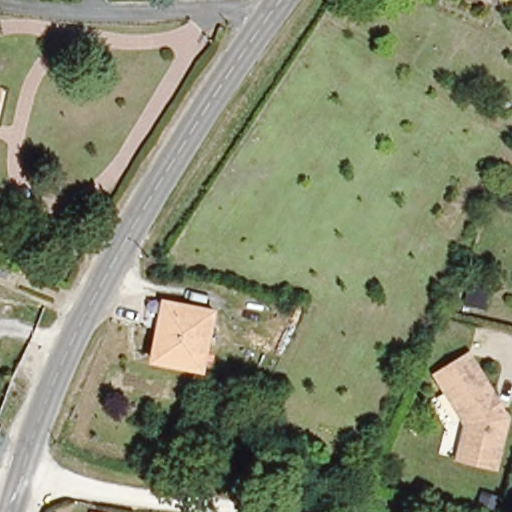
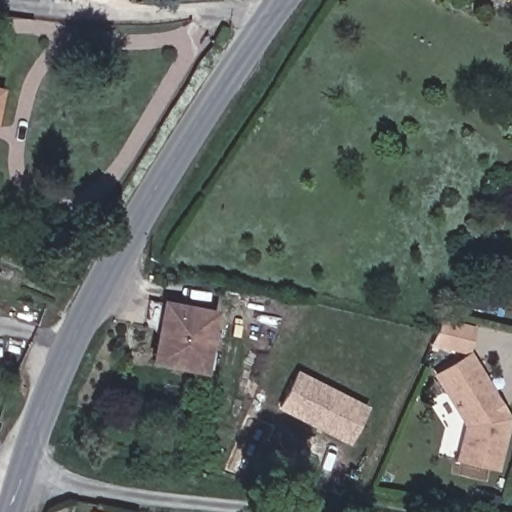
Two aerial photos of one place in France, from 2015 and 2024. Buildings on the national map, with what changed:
unchanged [(0,120),(0,89),(6,90),(0,120)]
unchanged [(161,324),(147,321),(149,295),(166,298),(218,309),(205,366),(164,357),(155,356),(161,324)]
unchanged [(500,413),(491,466),(453,458),(457,422),(430,374),(465,353),(488,394),(485,404),(490,410),(496,407),(500,413)]
new [(350,443),(277,408),(296,369),(368,405),(350,443)]
unchanged [(499,512),(492,512),(481,508),(485,494),(503,499),(499,512)]

